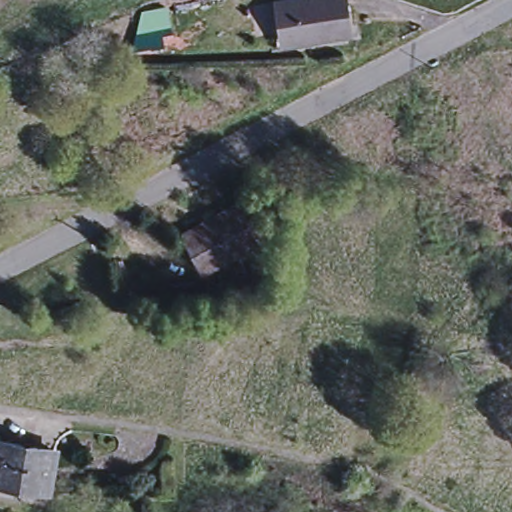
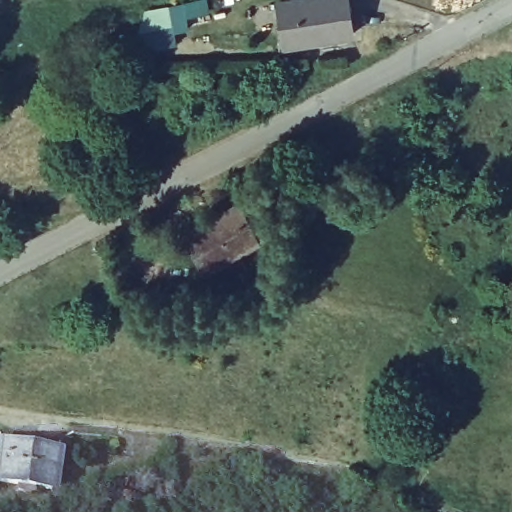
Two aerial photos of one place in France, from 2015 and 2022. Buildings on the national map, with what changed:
unchanged [(300,0),(346,0),(352,35),(315,40),(315,35),(280,40),(275,3),(300,0)]
unchanged [(257,242),(202,270),(184,236),(238,207),(257,242)]
unchanged [(0,478),(0,440),(3,440),(57,450),(51,486),(3,478),(0,478)]

